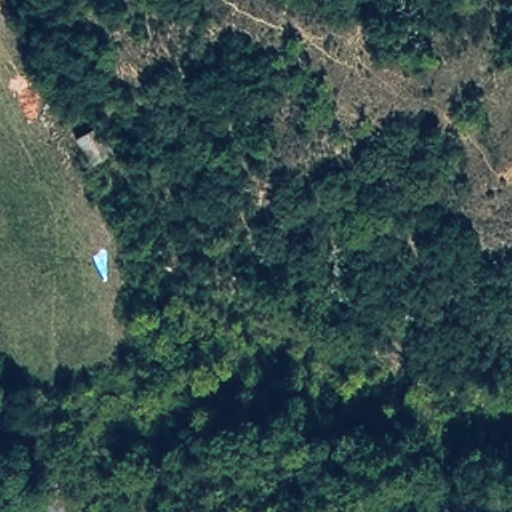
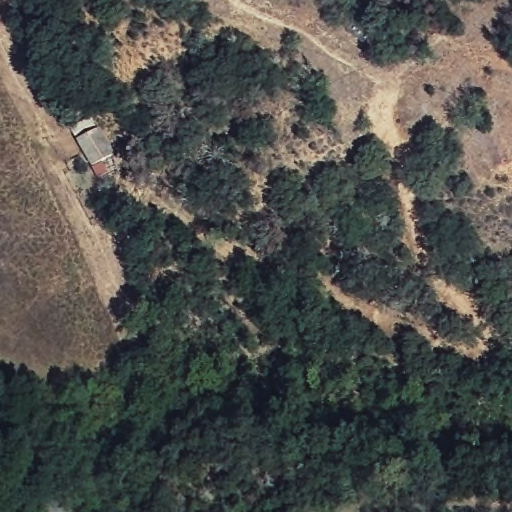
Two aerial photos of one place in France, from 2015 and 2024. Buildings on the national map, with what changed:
unchanged [(99,122),(113,151),(87,165),(72,137),(99,122)]

